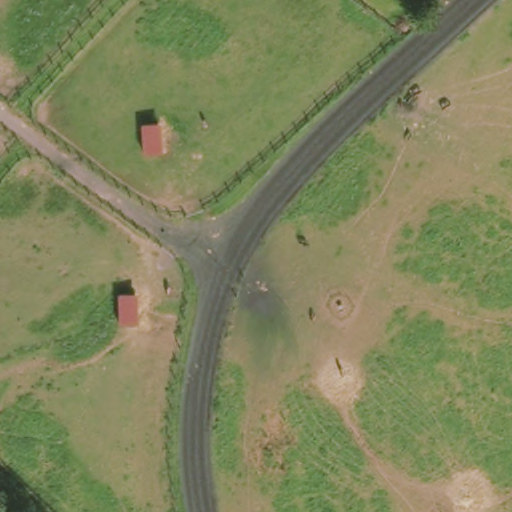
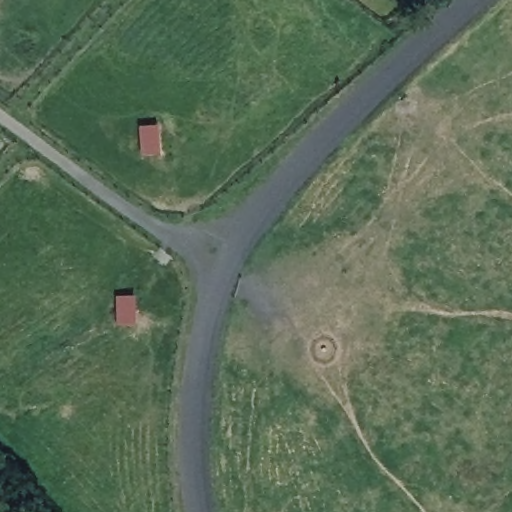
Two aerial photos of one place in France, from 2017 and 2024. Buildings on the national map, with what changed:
unchanged [(149,123),(164,122),(166,152),(151,153),(149,123)]
unchanged [(133,293),(147,293),(148,323),(129,323),(128,297),(133,293)]

